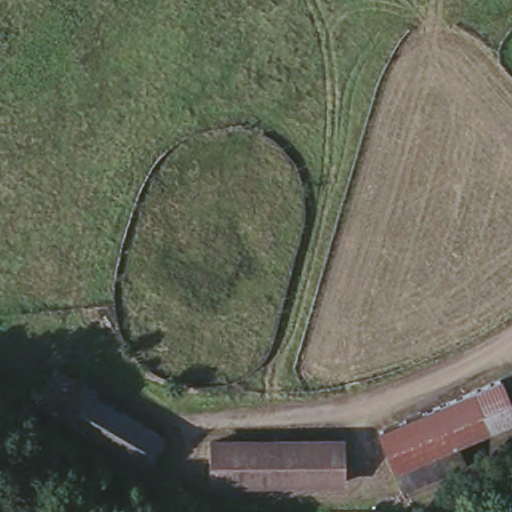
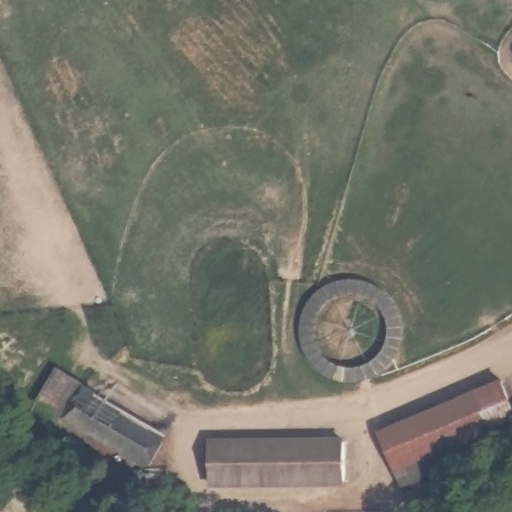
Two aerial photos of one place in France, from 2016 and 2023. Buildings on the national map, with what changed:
new [(402,340),(399,350),(394,359),(388,367),(380,374),(371,379),(361,382),(351,383),(341,382),(331,379),(322,374),(314,367),(307,359),(302,350),(299,340),(298,330),(299,320),(302,310),(307,301),(314,293),(322,287),(331,282),(341,279),(351,278),(361,279),(371,282),(380,287),(388,293),(394,301),(399,310),(402,320),(403,330),(402,340)]
unchanged [(58,361),(99,384),(97,390),(161,426),(144,457),(39,395),(58,361)]
unchanged [(504,373),(512,391),(512,417),(461,438),(470,458),(407,484),(382,425),(504,373)]
unchanged [(347,439),(348,477),(212,483),(211,441),(347,439)]

